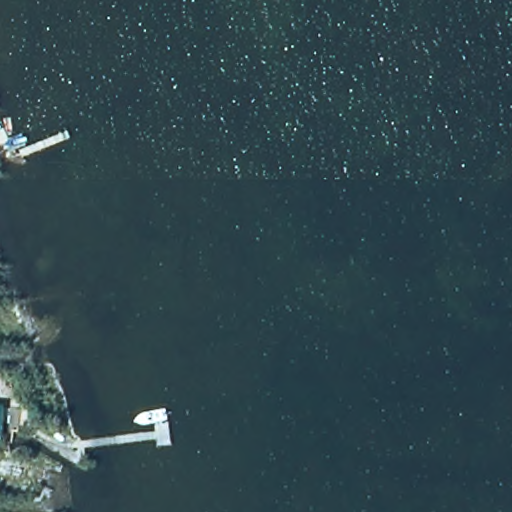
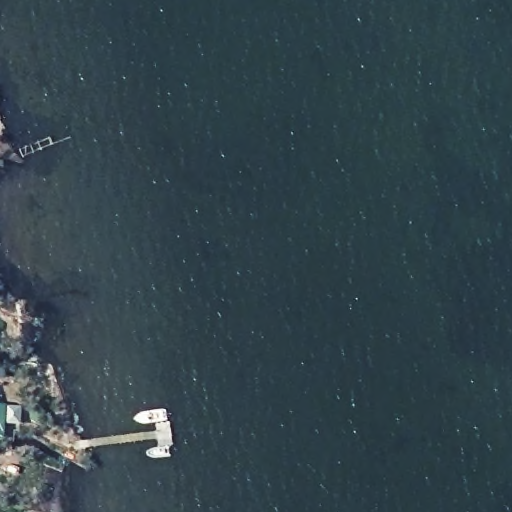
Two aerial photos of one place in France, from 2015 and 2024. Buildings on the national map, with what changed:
unchanged [(4,405),(4,436),(0,436),(0,405),(4,405)]

